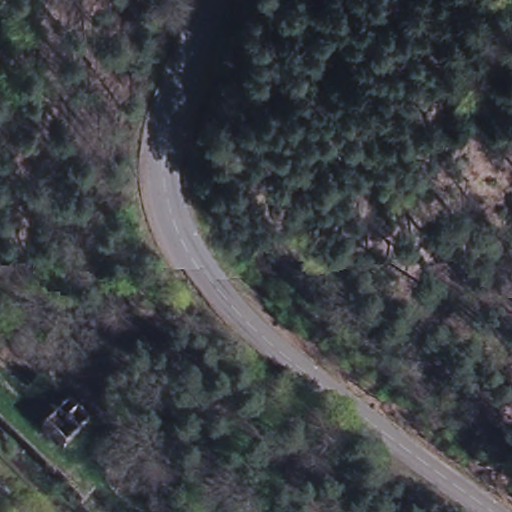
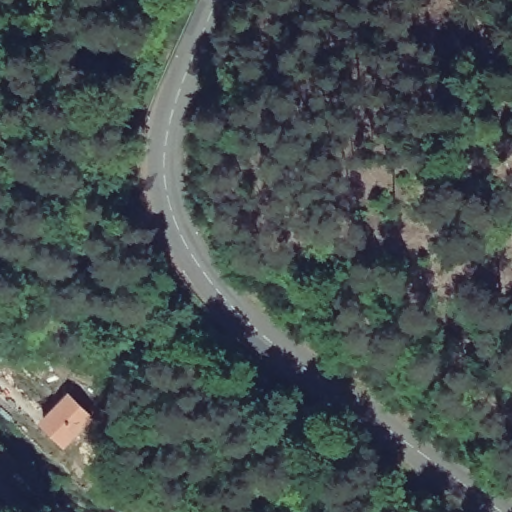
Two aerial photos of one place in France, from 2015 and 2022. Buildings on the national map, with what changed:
unchanged [(93,416),(65,443),(43,421),(71,394),(93,416)]
unchanged [(0,509),(3,512),(0,512),(0,509)]

